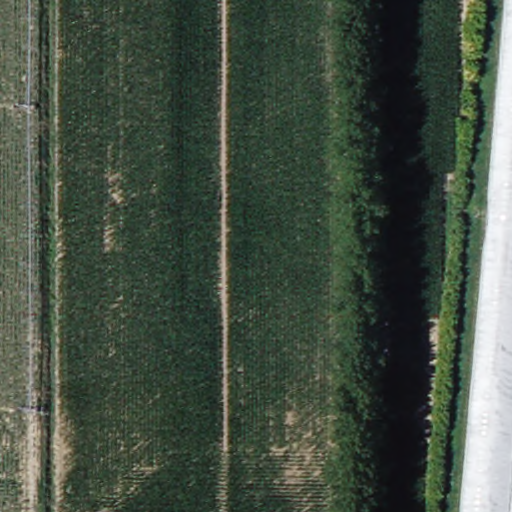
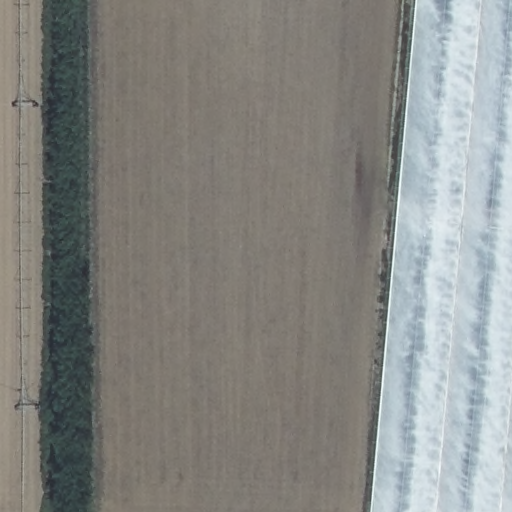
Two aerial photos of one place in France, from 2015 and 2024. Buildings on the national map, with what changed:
new [(423,0),(498,0),(452,512),(377,512),(423,0)]
unchanged [(498,0),(512,0),(512,512),(452,512),(498,0)]

